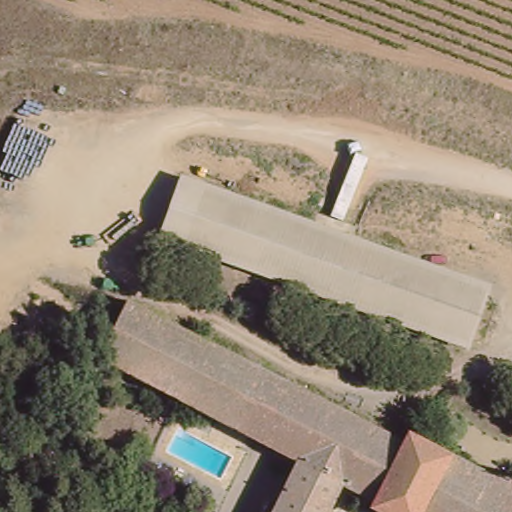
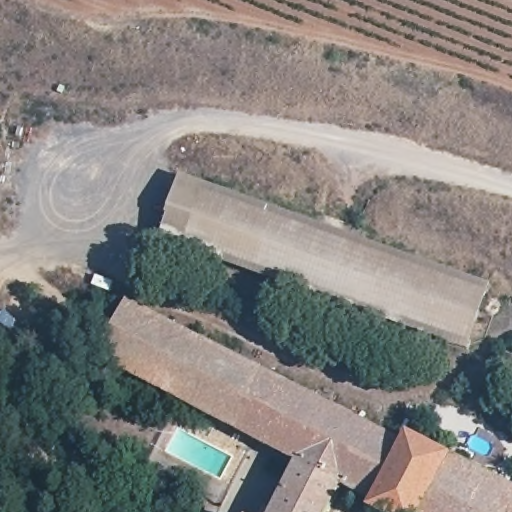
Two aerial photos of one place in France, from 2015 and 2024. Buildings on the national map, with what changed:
unchanged [(490,287),(472,337),(166,229),(184,178),(490,287)]
unchanged [(410,439),(512,491),(512,512),(373,512),(375,507),(344,490),(333,512),(276,512),(299,466),(101,364),(130,307),(405,449),(410,439)]

